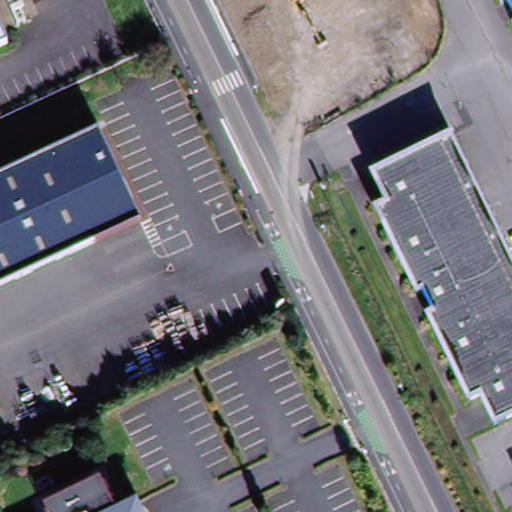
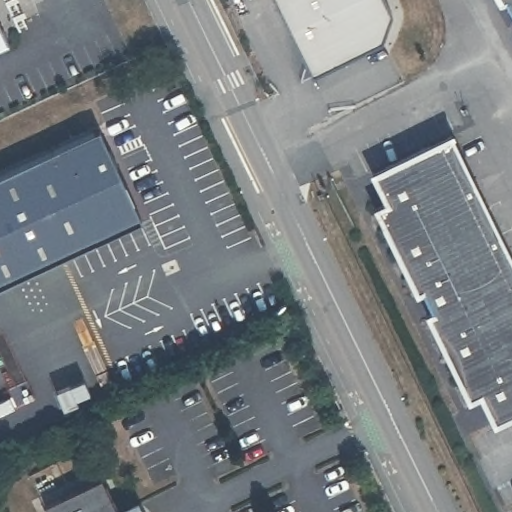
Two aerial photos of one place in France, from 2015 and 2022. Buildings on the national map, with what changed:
new [(379,46),(307,81),(269,0),(379,0),(389,21),(379,46)]
unchanged [(512,0),(512,14),(505,0),(512,0)]
unchanged [(8,37),(0,41),(0,20),(8,37)]
unchanged [(512,20),(512,22),(511,21),(512,20)]
unchanged [(150,219),(0,288),(0,176),(107,127),(150,219)]
unchanged [(512,410),(491,421),(477,391),(466,396),(374,204),(386,198),(372,169),(451,131),(512,259),(512,410)]
unchanged [(44,503),(100,477),(117,512),(48,512),(44,503)]
unchanged [(135,503),(139,512),(117,512),(135,503)]

